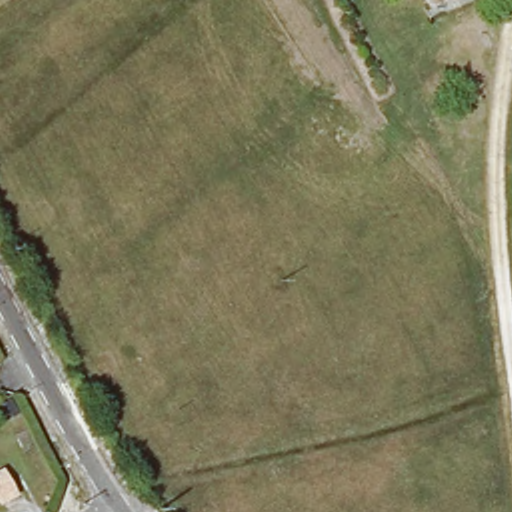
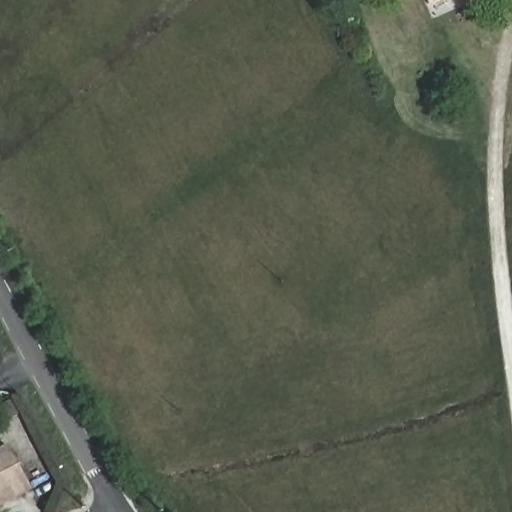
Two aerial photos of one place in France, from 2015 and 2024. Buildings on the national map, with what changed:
unchanged [(427,4),(426,0),(436,0),(427,4)]
unchanged [(0,502),(0,472),(13,495),(0,502)]

